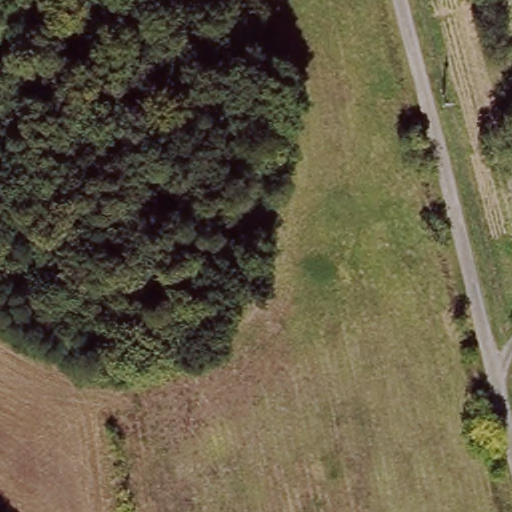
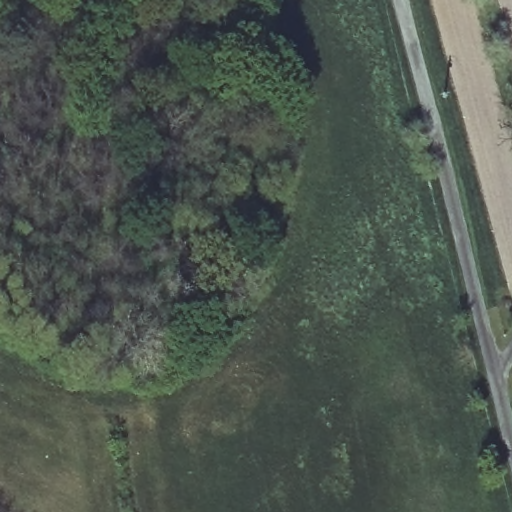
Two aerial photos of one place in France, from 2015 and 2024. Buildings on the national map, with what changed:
[]

